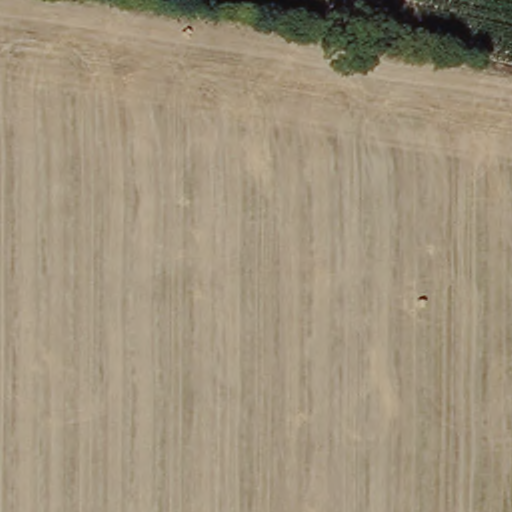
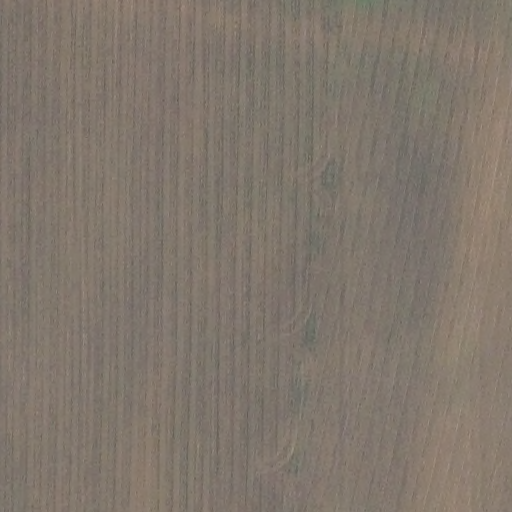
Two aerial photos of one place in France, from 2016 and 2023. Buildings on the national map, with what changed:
[]

